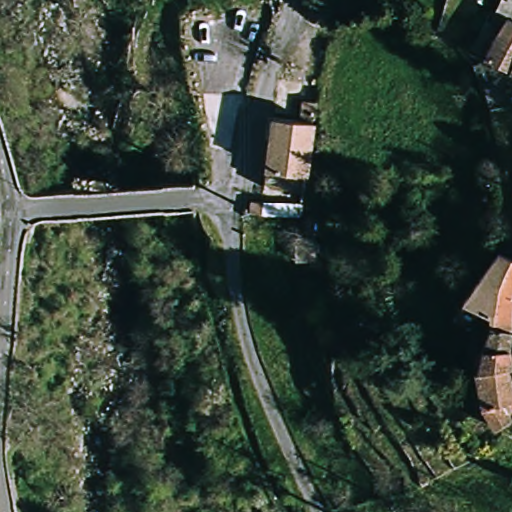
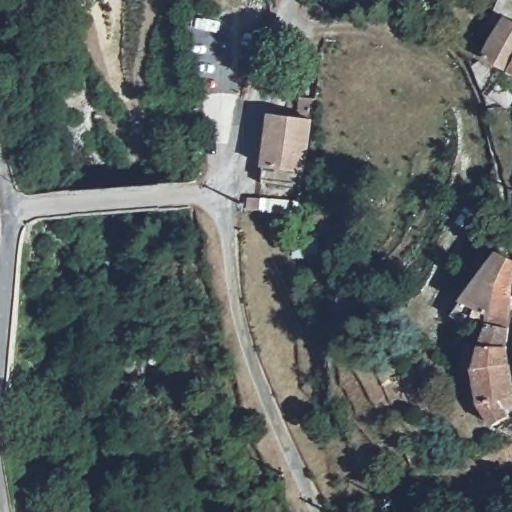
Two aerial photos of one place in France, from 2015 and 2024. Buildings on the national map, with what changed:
unchanged [(510,0),(512,0),(512,93),(481,74),(494,45),(482,37),(497,8),(504,12),(510,0)]
unchanged [(309,183),(265,178),(273,126),(276,106),(319,113),(312,164),(309,183)]
unchanged [(479,379),(476,362),(474,354),(480,337),(487,315),(497,318),(499,309),(471,298),(494,248),(512,256),(512,308),(511,322),(510,336),(509,359),(512,374),(512,397),(504,401),(511,417),(497,424),(487,402),(479,379)]

